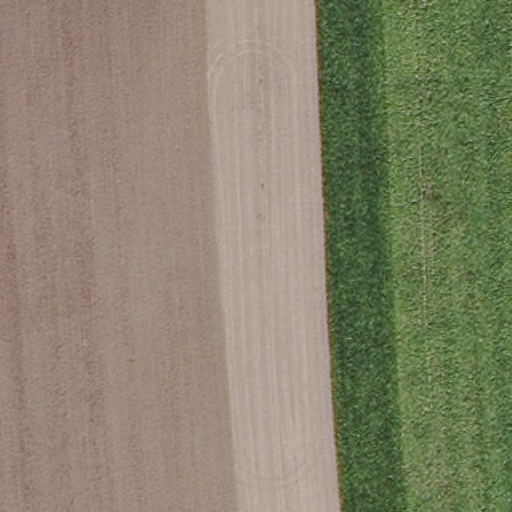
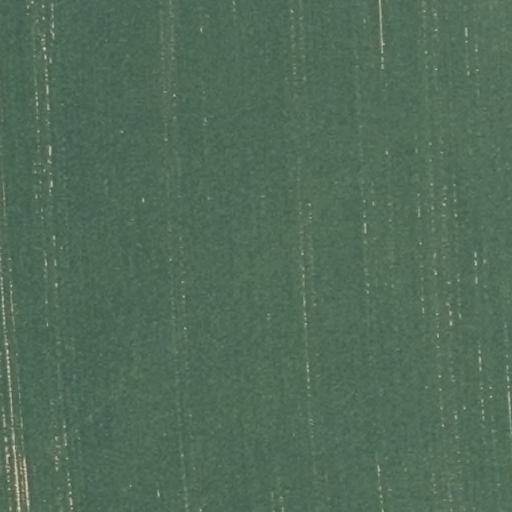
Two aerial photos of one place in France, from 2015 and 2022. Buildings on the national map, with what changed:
[]

